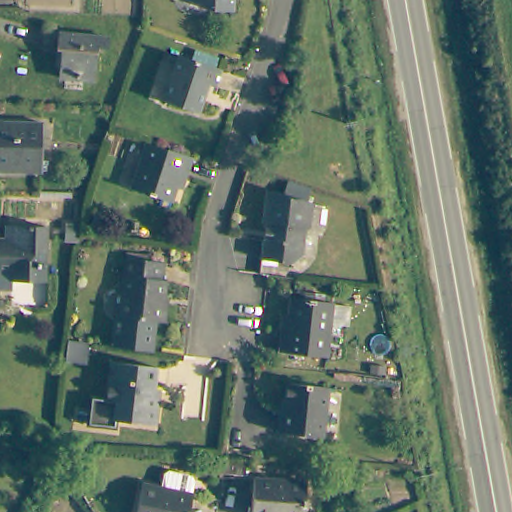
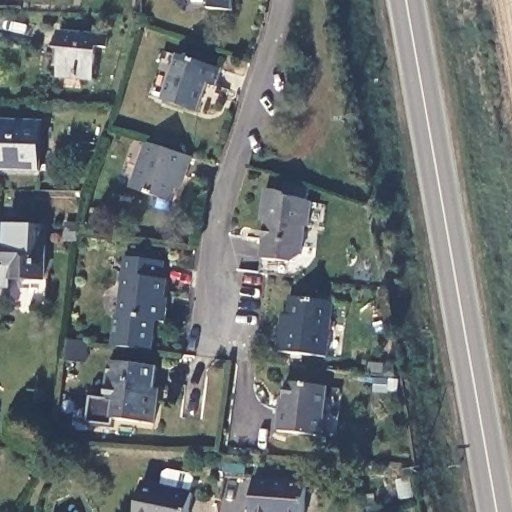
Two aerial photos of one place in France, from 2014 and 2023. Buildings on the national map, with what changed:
unchanged [(212,16),(213,9),(202,7),(191,5),(191,0),(231,0),(231,15),(212,16)]
unchanged [(103,45),(91,46),(89,76),(53,75),(54,49),(50,49),(51,32),(103,33),(103,45)]
unchanged [(208,87),(201,86),(190,116),(153,102),(169,54),(214,71),(208,87)]
unchanged [(34,172),(0,171),(0,124),(36,124),(34,172)]
unchanged [(170,184),(160,213),(123,200),(146,132),(192,147),(185,167),(179,186),(170,184)]
unchanged [(304,217),(295,218),(295,246),(287,246),(284,268),(255,264),(258,232),(260,232),(261,217),(258,216),(262,180),(284,182),(285,190),(306,192),(304,217)]
unchanged [(7,272),(0,271),(0,242),(3,242),(3,226),(38,226),(38,242),(38,282),(7,283),(7,272)]
unchanged [(123,347),(119,347),(123,317),(126,317),(133,258),(170,263),(167,280),(172,281),(166,323),(159,322),(155,352),(123,347)]
unchanged [(324,301),(317,355),(270,349),(272,337),(275,313),(282,315),(284,296),(324,301)]
unchanged [(100,423),(102,407),(95,407),(100,366),(142,370),(139,406),(144,408),(142,428),(100,423)]
unchanged [(316,438),(274,435),(275,410),(283,411),(285,385),(321,388),(316,438)]
unchanged [(179,512),(128,512),(132,490),(148,492),(151,478),(156,474),(175,477),(179,482),(177,497),(181,498),(179,512)]
unchanged [(296,512),(243,512),(245,478),(298,482),(296,512)]

